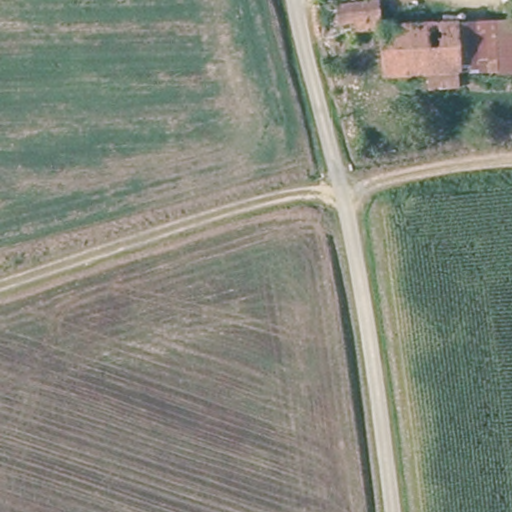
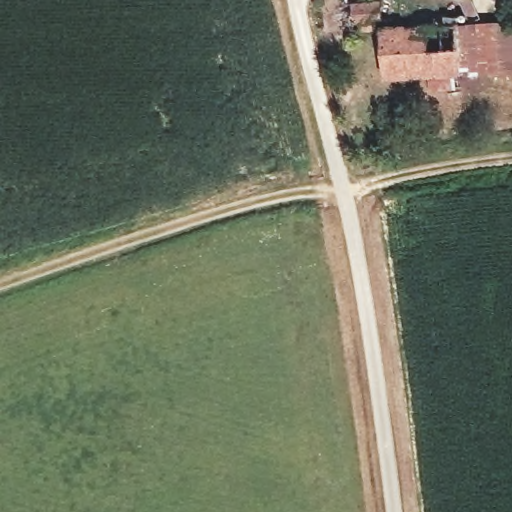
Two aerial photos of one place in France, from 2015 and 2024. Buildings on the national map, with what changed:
unchanged [(318,1),(366,0),(382,0),(385,27),(325,31),(318,1)]
unchanged [(458,22),(495,21),(500,68),(461,70),(458,22)]
unchanged [(512,21),(512,68),(500,68),(495,21),(512,21)]
unchanged [(458,22),(461,70),(388,75),(385,27),(458,22)]

